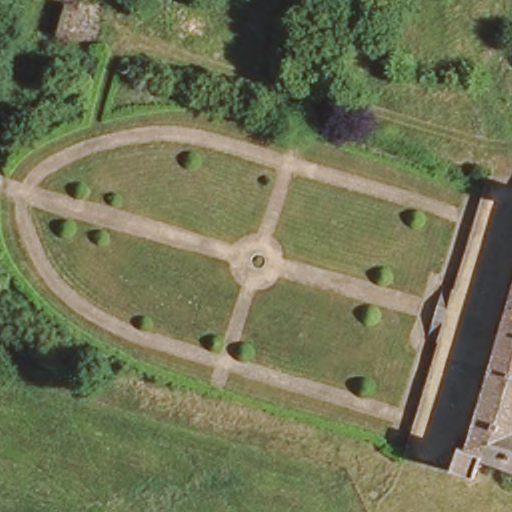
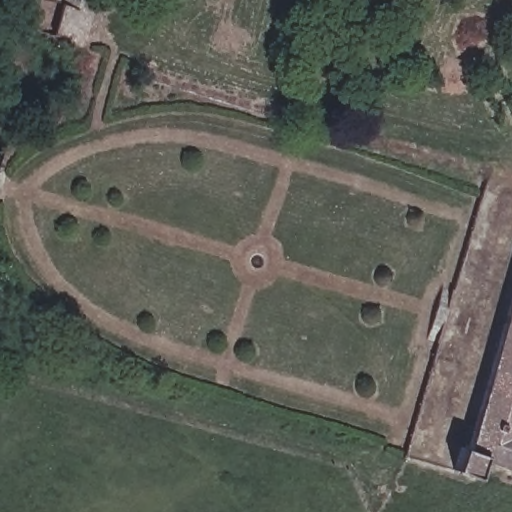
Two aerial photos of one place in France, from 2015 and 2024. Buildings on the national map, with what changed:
unchanged [(0,165),(0,154),(3,155),(0,165)]
unchanged [(512,287),(512,467),(479,455),(474,472),(451,466),(459,437),(466,440),(512,287)]

